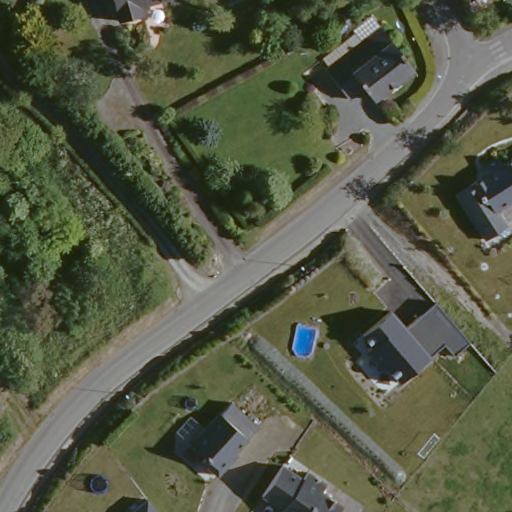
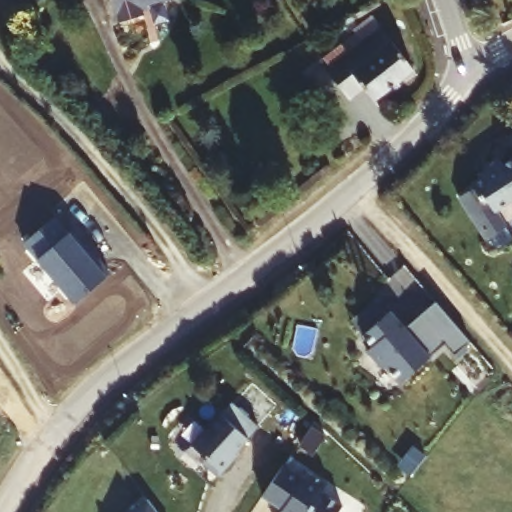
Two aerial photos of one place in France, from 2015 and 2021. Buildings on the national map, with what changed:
unchanged [(135,19),(115,26),(107,0),(166,0),(133,11),(135,19)]
unchanged [(320,70),(330,64),(380,29),(392,47),(393,47),(409,70),(367,102),(359,90),(342,102),(320,70)]
unchanged [(512,216),(505,221),(507,227),(486,240),(454,191),(512,158),(512,216)]
new [(54,222),(67,237),(72,234),(110,277),(75,307),(24,248),(54,222)]
unchanged [(471,342),(453,355),(445,346),(430,357),(432,359),(400,386),(391,377),(389,379),(357,340),(393,310),(406,325),(436,302),(471,342)]
unchanged [(230,458),(218,472),(202,457),(205,453),(198,447),(225,416),(226,417),(237,405),(245,412),(258,423),(248,435),(229,456),(230,458)]
unchanged [(288,467),(308,481),(313,473),(331,486),(326,493),(347,507),(344,512),(287,512),(267,498),(288,467)]
unchanged [(150,498),(160,512),(132,512),(150,498)]

